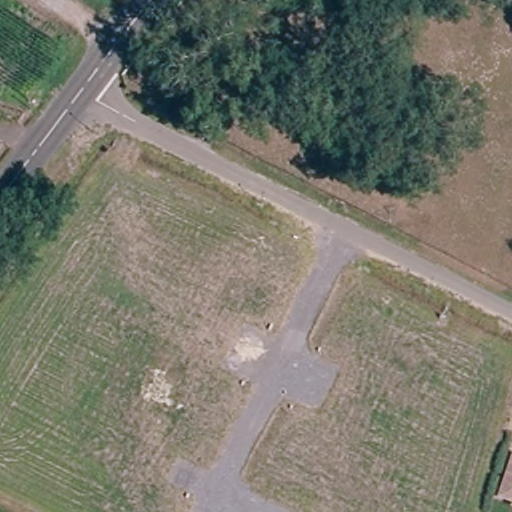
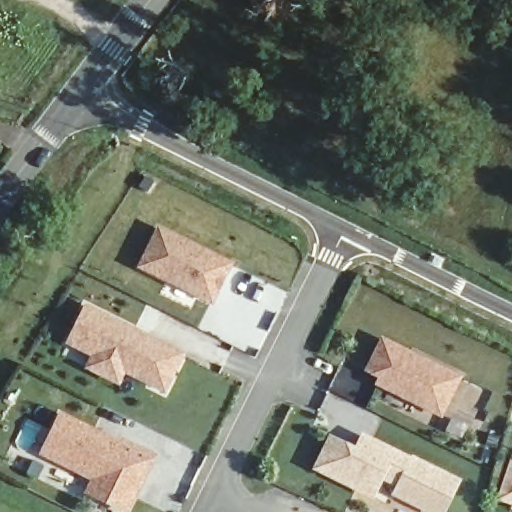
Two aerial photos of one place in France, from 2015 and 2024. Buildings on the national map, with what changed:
new [(234,262),(213,305),(137,268),(158,225),(234,262)]
new [(84,370),(90,357),(66,345),(86,303),(186,353),(166,395),(125,375),(120,387),(84,370)]
new [(463,377),(442,418),(375,385),(378,377),(365,371),(382,337),(463,377)]
new [(118,436),(158,456),(129,512),(121,512),(85,495),(92,481),(40,456),(62,412),(117,439),(118,436)]
new [(362,433),(412,457),(413,455),(462,480),(446,512),(423,512),(392,496),(395,488),(382,482),(374,500),(312,470),(330,435),(356,446),(362,433)]
unchanged [(508,498),(511,489),(512,482),(512,499),(508,498)]

